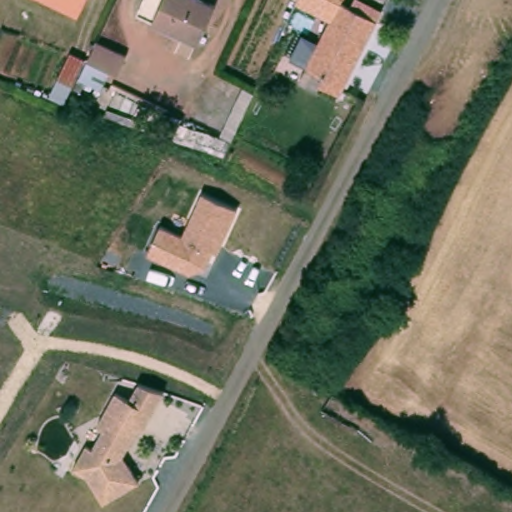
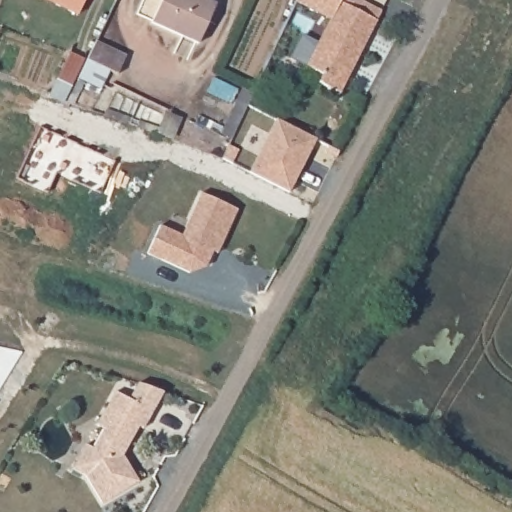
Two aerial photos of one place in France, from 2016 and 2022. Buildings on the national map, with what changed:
unchanged [(56,0),(85,0),(79,13),(56,0)]
unchanged [(210,0),(220,4),(203,43),(155,21),(164,0),(210,0)]
unchanged [(339,0),(375,19),(340,94),(316,83),(320,74),(305,66),(337,0),(339,0)]
unchanged [(94,41),(124,56),(115,75),(85,60),(94,41)]
new [(280,123),(320,144),(292,197),(252,176),(280,123)]
unchanged [(236,208),(217,251),(212,249),(206,265),(188,272),(146,254),(159,224),(180,234),(200,191),(236,208)]
unchanged [(164,389),(142,429),(137,428),(122,457),(139,482),(104,505),(86,476),(72,469),(86,443),(92,446),(100,429),(95,426),(115,389),(129,397),(136,383),(164,389)]

